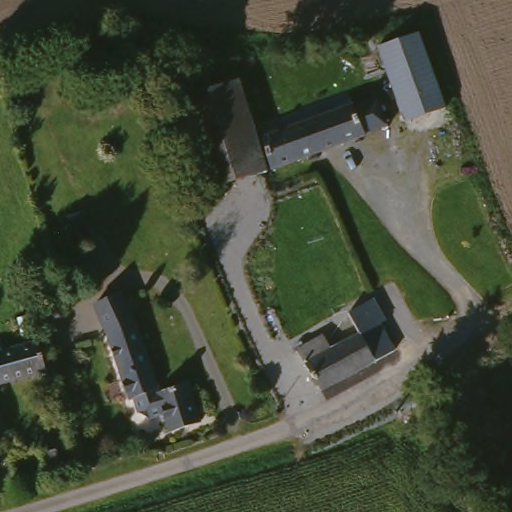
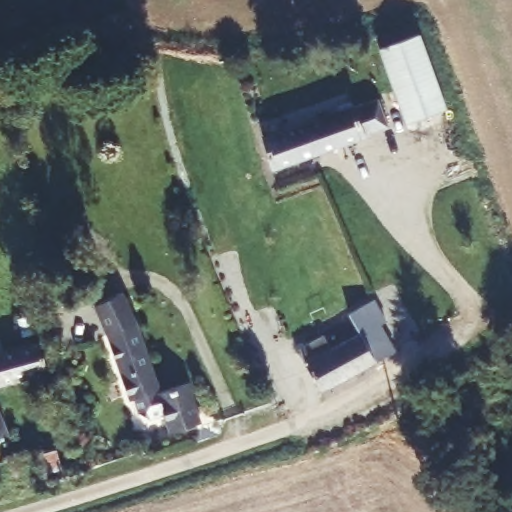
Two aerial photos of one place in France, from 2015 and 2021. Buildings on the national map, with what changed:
unchanged [(427,37),(450,111),(410,124),(384,50),(427,37)]
unchanged [(303,153),(272,164),(265,144),(263,136),(351,103),(363,133),(303,153)]
unchanged [(128,392),(106,327),(98,302),(102,300),(122,291),(132,319),(154,384),(128,392)]
unchanged [(353,322),(348,315),(373,301),(388,324),(379,328),(395,353),(387,359),(374,332),(362,339),(353,322)]
unchanged [(310,372),(299,355),(329,338),(338,354),(362,339),(374,332),(387,359),(323,395),(312,376),(310,372)]
unchanged [(39,345),(45,366),(36,368),(23,372),(1,377),(0,378),(0,355),(19,350),(39,345)]
unchanged [(156,389),(187,380),(200,419),(168,430),(156,389)]
unchanged [(0,433),(0,424),(3,432),(0,433)]

